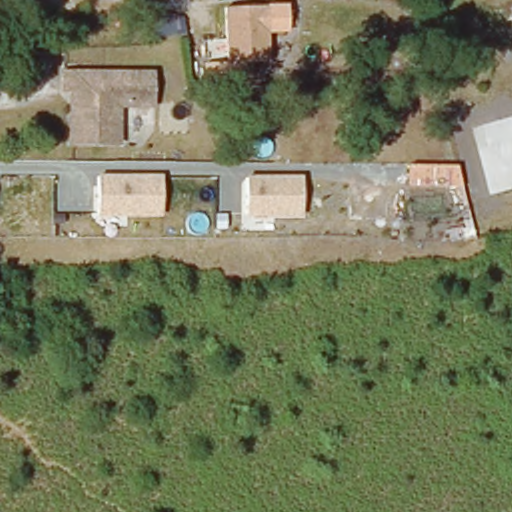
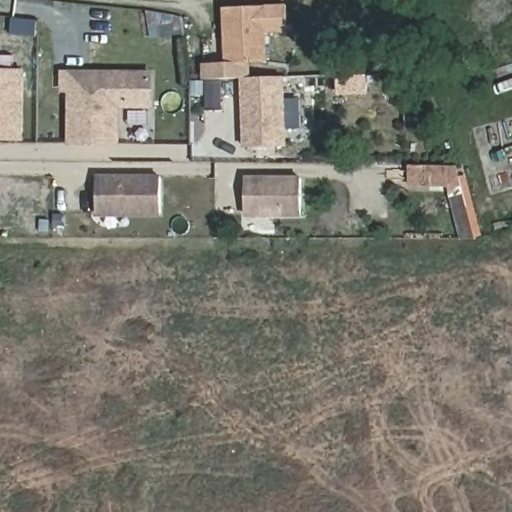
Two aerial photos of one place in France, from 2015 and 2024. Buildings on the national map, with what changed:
unchanged [(270,34),(269,6),(288,5),(289,33),(270,34)]
unchanged [(209,87),(206,62),(228,61),(225,9),(269,6),(272,81),(209,87)]
unchanged [(185,35),(158,37),(154,8),(183,15),(185,35)]
new [(13,58),(13,75),(25,75),(24,142),(0,141),(0,58),(13,58)]
unchanged [(73,145),(74,117),(73,92),(67,92),(67,72),(150,74),(151,110),(120,110),(120,144),(73,145)]
new [(287,146),(244,148),(241,84),(272,81),(272,77),(284,76),(287,146)]
demolished [(283,86),(285,109),(255,110),(254,87),(283,86)]
unchanged [(457,165),(461,187),(406,185),(408,164),(457,165)]
unchanged [(162,174),(162,217),(96,217),(96,174),(162,174)]
unchanged [(303,176),(303,215),(248,217),(245,176),(303,176)]

